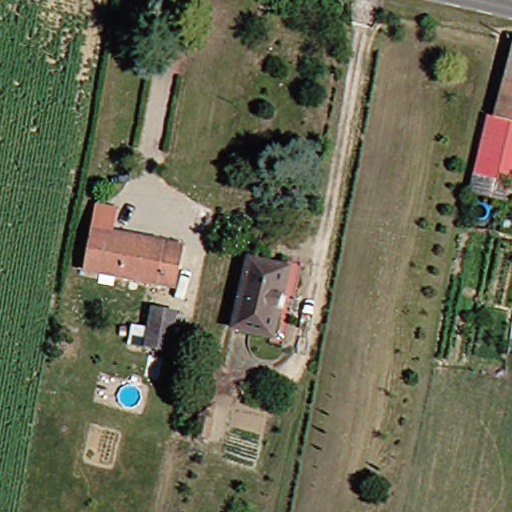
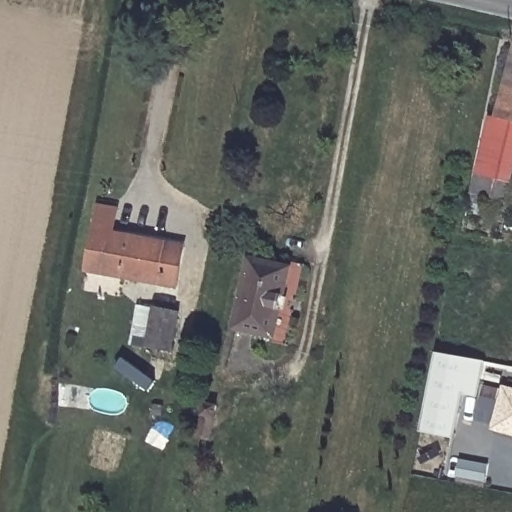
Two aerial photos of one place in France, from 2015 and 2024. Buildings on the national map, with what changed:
unchanged [(512,42),(512,144),(502,183),(483,180),(481,188),(464,184),(465,177),(481,119),(488,120),(508,41),(512,42)]
unchanged [(116,249),(117,239),(171,247),(165,287),(78,274),(83,243),(116,249)]
unchanged [(280,271),(265,340),(225,331),(241,262),(280,271)]
unchanged [(176,312),(171,353),(146,349),(152,309),(176,312)]
new [(479,397),(463,394),(454,439),(420,433),(436,352),(485,361),(479,397)]
new [(502,384),(512,387),(512,436),(491,430),(502,384)]
unchanged [(206,405),(218,408),(211,440),(198,437),(206,405)]

